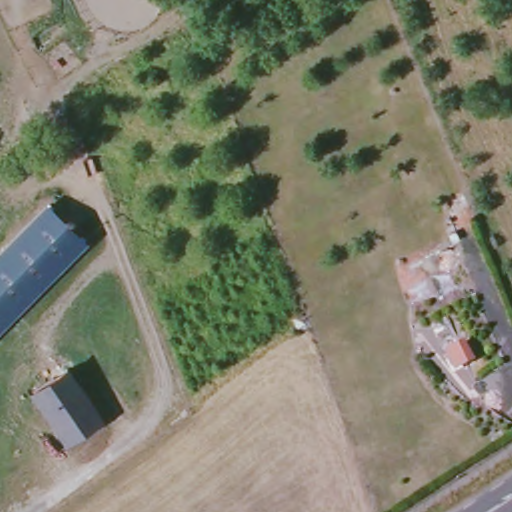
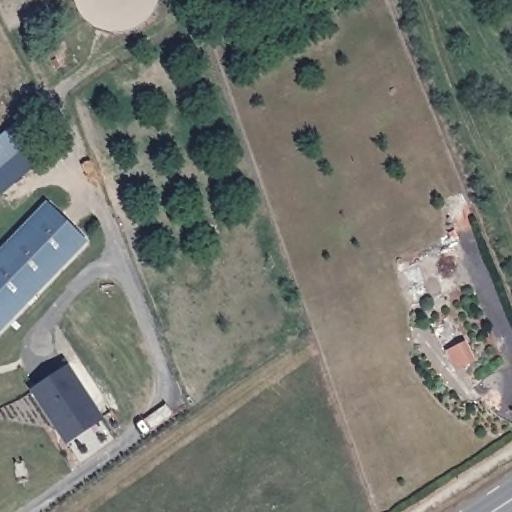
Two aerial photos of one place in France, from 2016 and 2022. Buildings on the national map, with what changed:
new [(43,159),(2,195),(0,193),(0,136),(11,126),(43,159)]
unchanged [(88,243),(0,332),(0,250),(46,202),(88,243)]
unchanged [(69,368),(102,420),(64,445),(30,391),(69,368)]

